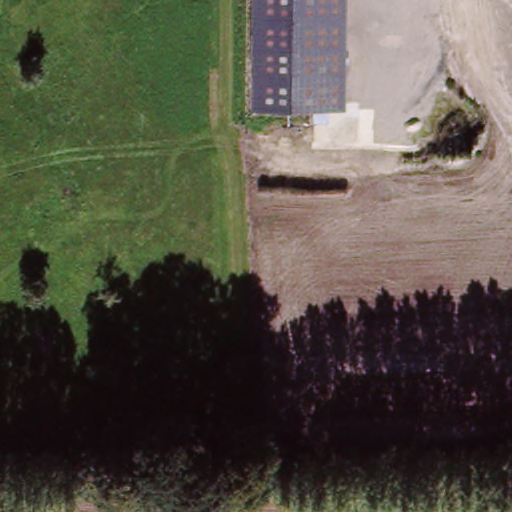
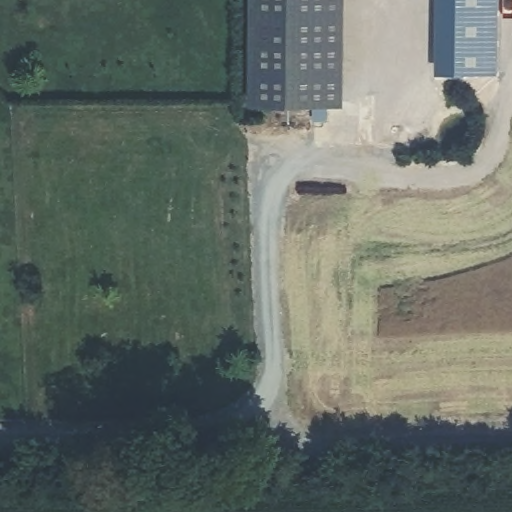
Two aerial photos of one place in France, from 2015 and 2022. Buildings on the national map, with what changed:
unchanged [(252,107),(252,0),(347,0),(346,108),(252,107)]
new [(437,74),(437,0),(499,0),(499,72),(437,74)]

